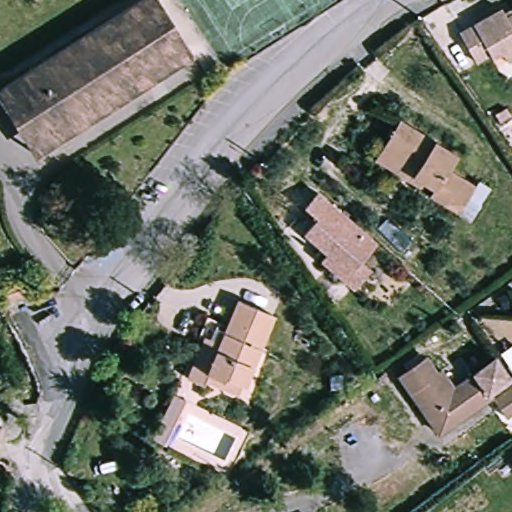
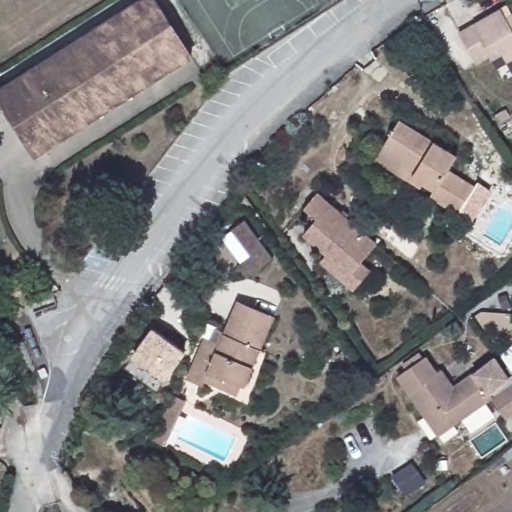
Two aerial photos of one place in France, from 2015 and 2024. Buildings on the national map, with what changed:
unchanged [(8,111),(0,100),(0,89),(140,0),(154,0),(191,57),(47,149),(36,156),(8,111)]
unchanged [(501,53),(491,59),(489,55),(475,63),(459,34),(500,10),(505,18),(512,15),(512,59),(506,62),(501,53)]
unchanged [(494,183),(474,216),(463,209),(436,193),(440,186),(429,179),(426,184),(379,155),(386,144),(404,115),(461,151),(452,165),(480,182),(483,177),(494,183)]
unchanged [(512,135),(507,138),(503,130),(512,126),(512,135)]
unchanged [(353,289),(344,281),(320,260),(326,254),(302,233),(315,218),(303,207),(316,192),(376,244),(360,262),(370,270),(353,289)]
unchanged [(23,283),(27,294),(7,301),(3,289),(23,283)]
unchanged [(210,380),(208,386),(192,379),(209,338),(215,341),(220,329),(229,333),(243,301),(278,317),(248,387),(244,385),(241,393),(210,380)]
new [(165,380),(132,357),(153,328),(185,352),(165,380)]
unchanged [(512,413),(505,418),(490,397),(437,433),(398,377),(425,358),(435,373),(440,370),(452,388),(494,358),(507,378),(512,375),(512,413)]
unchanged [(185,401),(164,446),(153,440),(174,396),(185,401)]

